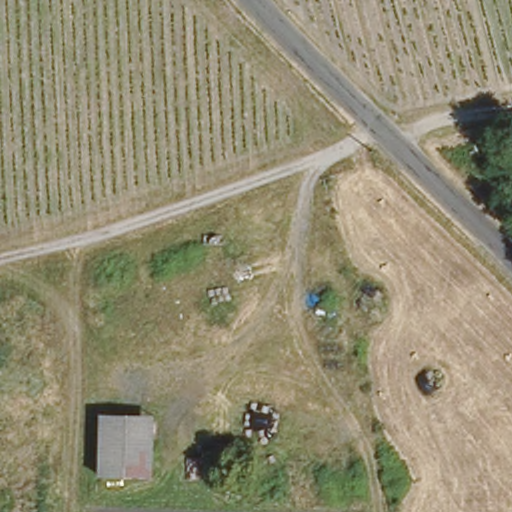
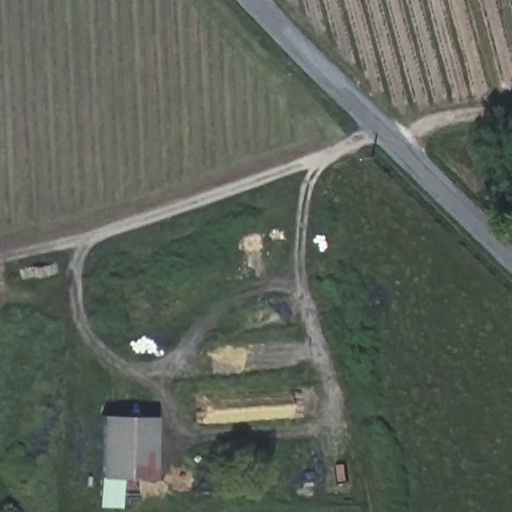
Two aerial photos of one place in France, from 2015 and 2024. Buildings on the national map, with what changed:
unchanged [(101,412),(157,413),(155,478),(98,478),(101,412)]

